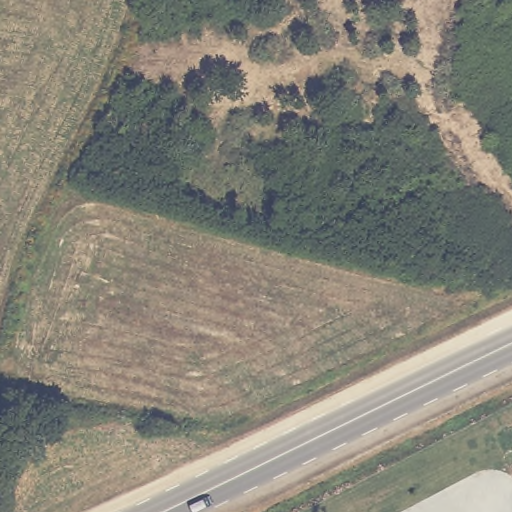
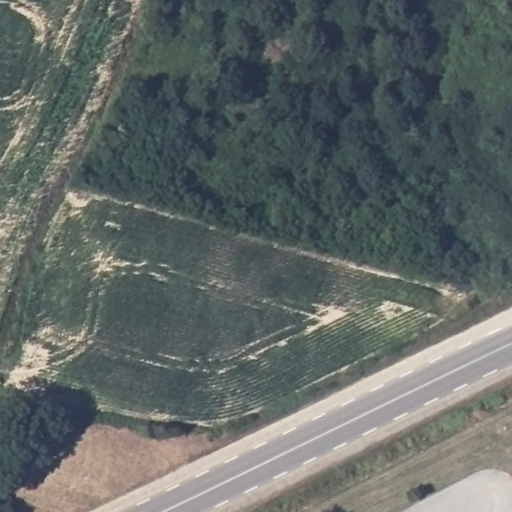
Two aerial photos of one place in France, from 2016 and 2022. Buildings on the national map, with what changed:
[]

